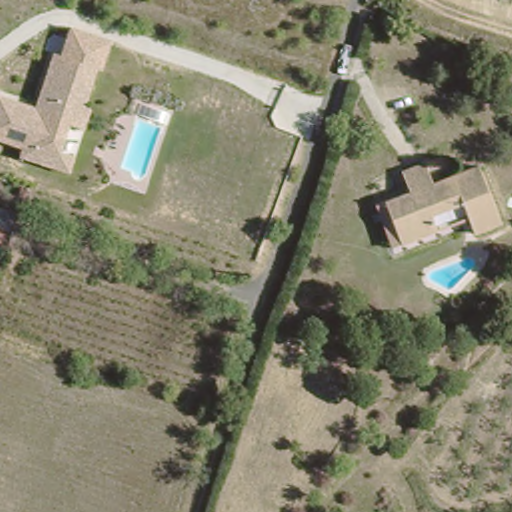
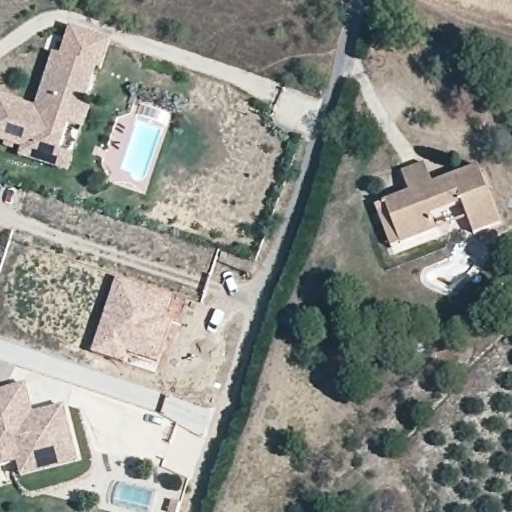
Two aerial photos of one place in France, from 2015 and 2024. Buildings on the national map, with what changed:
unchanged [(35,102),(53,48),(60,50),(68,24),(108,36),(69,167),(20,154),(23,147),(0,139),(0,91),(35,102)]
unchanged [(497,230),(468,238),(464,225),(460,213),(430,222),(433,234),(396,242),(381,194),(402,188),(395,165),(425,157),(432,180),(479,168),(497,230)]
new [(115,275),(183,297),(155,372),(89,351),(115,275)]
new [(25,384),(32,414),(63,407),(77,462),(19,476),(16,462),(0,467),(0,391),(25,384)]
new [(168,498),(181,501),(179,512),(166,509),(168,498)]

